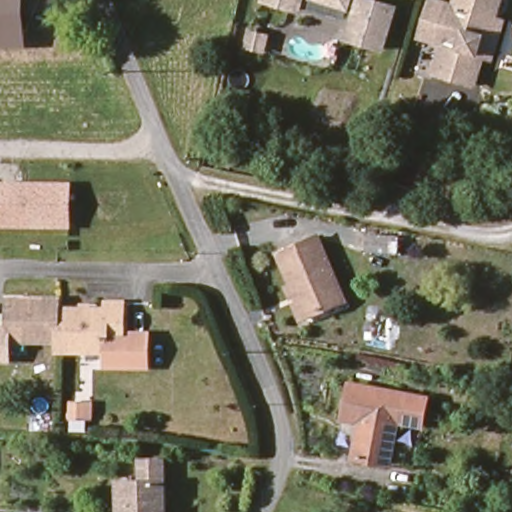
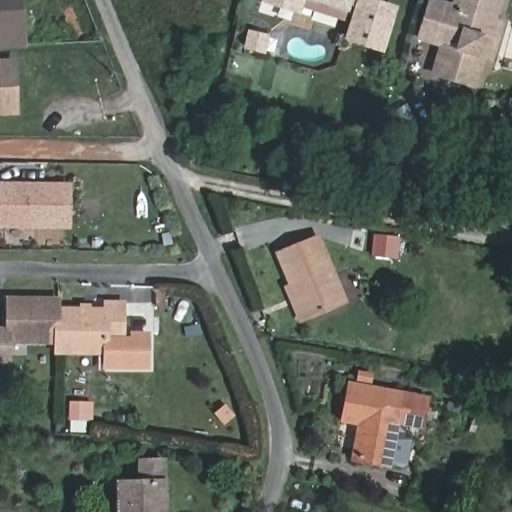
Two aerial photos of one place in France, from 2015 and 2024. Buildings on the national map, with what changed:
unchanged [(22,43),(0,43),(0,0),(22,0),(22,43)]
unchanged [(353,21),(354,20),(302,1),(300,7),(291,3),(282,0),(374,0),(401,10),(387,50),(358,40),(348,37),(353,21)]
unchanged [(472,85),(433,74),(442,44),(434,41),(432,41),(421,37),(431,0),(432,0),(433,1),(443,3),(444,4),(453,6),(455,0),(496,0),(491,19),(501,21),(489,61),(480,58),(472,85)]
unchanged [(257,51),(241,47),(245,31),(261,35),(257,51)]
new [(0,59),(17,58),(21,116),(0,117),(0,59)]
unchanged [(0,229),(0,182),(72,182),(74,229),(0,229)]
unchanged [(366,232),(401,236),(400,254),(363,252),(366,232)]
unchanged [(285,290),(292,287),(279,254),(318,236),(343,302),(303,317),(297,320),(285,290)]
unchanged [(8,301),(60,302),(59,313),(59,315),(58,345),(7,344),(7,358),(0,358),(0,328),(7,328),(8,301)]
unchanged [(59,315),(107,316),(107,308),(126,308),(124,344),(134,345),(134,340),(150,340),(149,372),(106,371),(107,356),(58,355),(58,345),(59,315)]
unchanged [(388,462),(353,456),(358,424),(342,421),(350,382),(402,391),(426,395),(421,423),(397,419),(388,462)]
unchanged [(141,461),(166,462),(165,512),(121,512),(122,484),(140,484),(141,461)]

